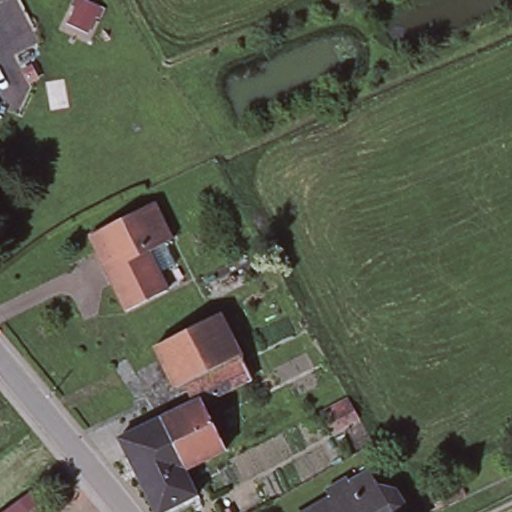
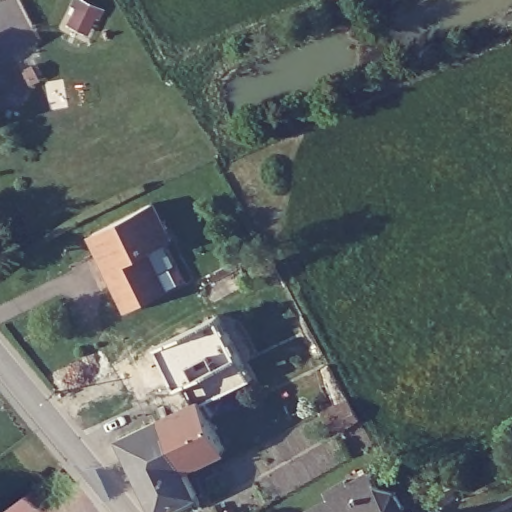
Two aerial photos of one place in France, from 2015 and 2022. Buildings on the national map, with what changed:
unchanged [(70,16),(78,0),(84,0),(97,6),(89,25),(70,16)]
unchanged [(127,310),(107,271),(90,235),(152,202),(172,240),(165,243),(175,264),(159,272),(167,290),(127,310)]
unchanged [(220,425),(210,430),(220,450),(180,470),(177,470),(152,420),(187,403),(179,385),(170,388),(150,345),(213,313),(247,378),(202,400),(208,411),(212,410),(220,425)]
unchanged [(349,400),(359,419),(331,435),(320,412),(347,398),(349,400)]
unchanged [(180,470),(185,480),(192,495),(158,512),(150,512),(113,438),(152,420),(177,470),(180,470)]
unchanged [(27,512),(5,512),(19,501),(27,512)]

